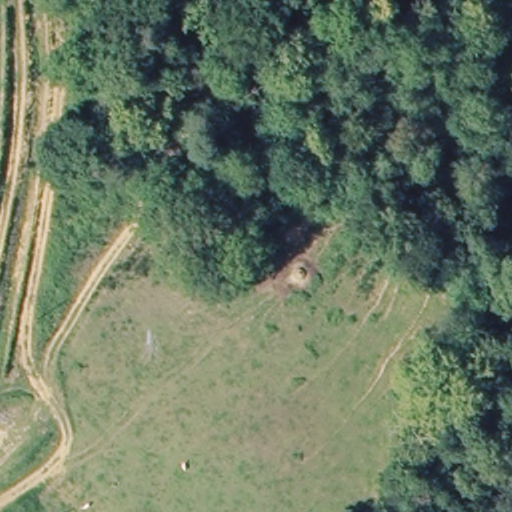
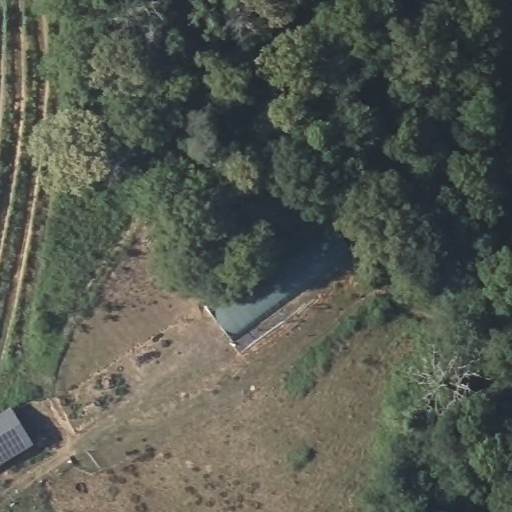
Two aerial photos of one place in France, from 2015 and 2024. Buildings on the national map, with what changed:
new [(0,466),(0,415),(10,409),(32,445),(0,466)]

